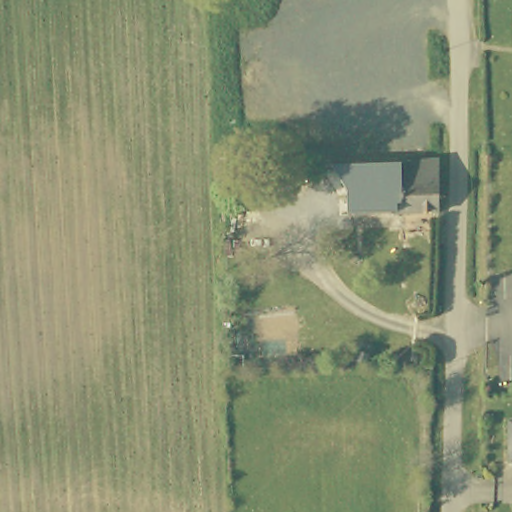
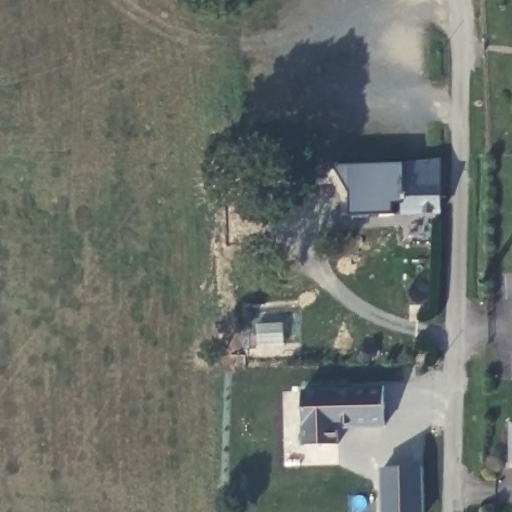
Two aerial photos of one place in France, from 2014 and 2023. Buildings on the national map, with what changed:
unchanged [(354,215),(353,193),(332,169),(366,169),(406,166),(405,163),(442,160),(442,211),(357,215),(354,215)]
new [(356,387),(356,384),(386,382),(387,424),(357,425),(357,422),(340,422),(341,443),(306,444),(303,390),(356,387)]
new [(426,512),(386,512),(385,467),(424,465),(426,512)]

